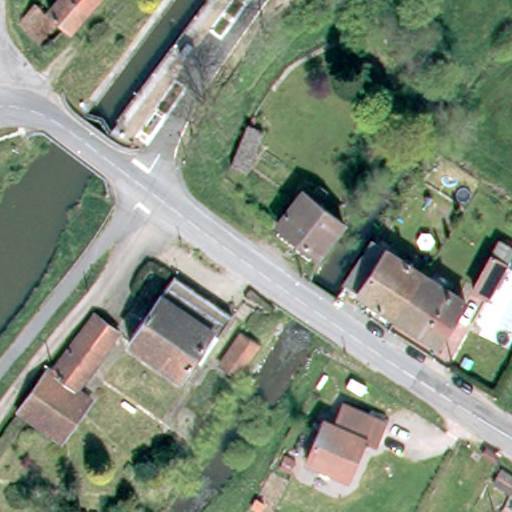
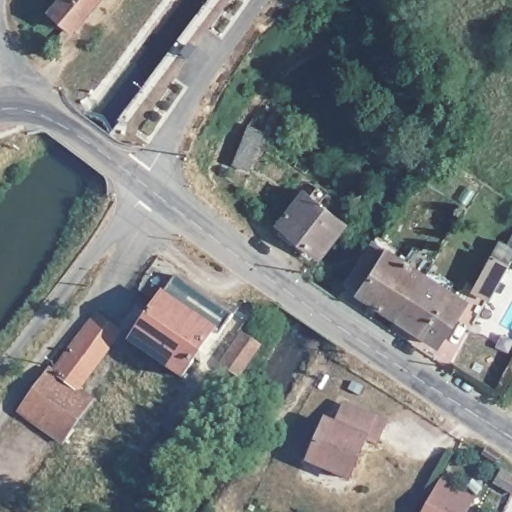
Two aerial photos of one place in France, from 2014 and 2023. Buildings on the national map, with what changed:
unchanged [(60,15),(40,40),(7,13),(18,0),(41,0),(44,2),(60,15)]
unchanged [(45,0),(89,0),(70,23),(60,15),(44,2),(45,0)]
unchanged [(209,164),(232,127),(247,138),(222,173),(209,164)]
unchanged [(282,221),(309,181),(317,186),(322,180),(336,188),(331,196),(345,205),(319,246),(316,244),(310,256),(276,232),(283,222),(282,221)]
unchanged [(371,247),(421,279),(394,322),(344,291),(371,247)]
unchanged [(490,247),(505,256),(482,302),(466,290),(490,247)]
unchanged [(130,339),(177,279),(230,318),(184,381),(161,363),(130,339)]
unchanged [(421,279),(458,302),(432,345),(394,322),(421,279)]
unchanged [(80,396),(94,406),(62,447),(19,416),(52,373),(57,377),(102,318),(125,336),(80,396)]
unchanged [(215,367),(238,338),(252,350),(228,378),(215,367)]
unchanged [(345,405),(385,420),(375,443),(365,440),(350,477),(310,462),(327,421),(336,425),(345,405)]
new [(462,512),(420,512),(438,479),(470,496),(462,512)]

